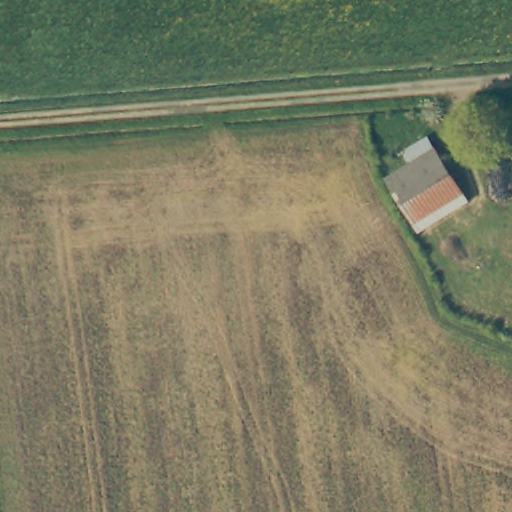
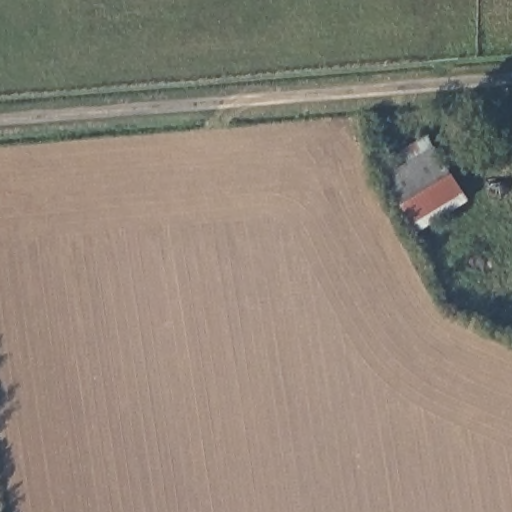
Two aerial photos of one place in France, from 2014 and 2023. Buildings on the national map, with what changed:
unchanged [(434,151),(465,203),(417,231),(385,180),(434,151)]

